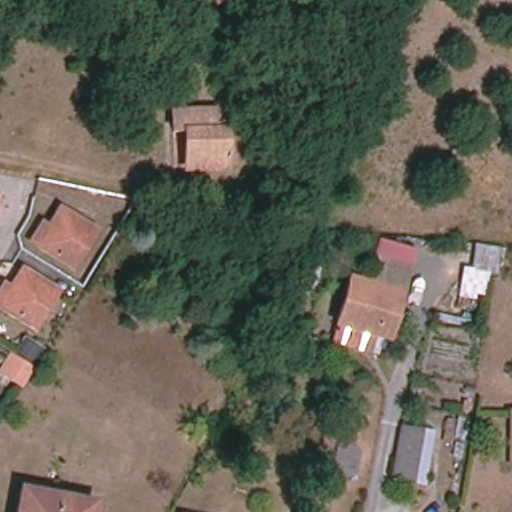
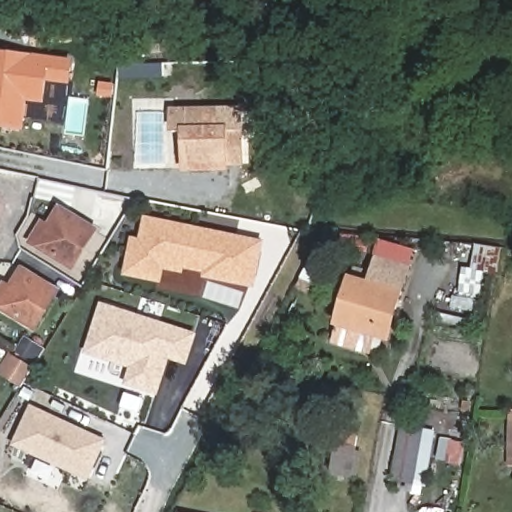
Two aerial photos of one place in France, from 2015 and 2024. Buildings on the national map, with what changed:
new [(73,59),(70,85),(47,82),(44,104),(27,102),(24,131),(0,128),(0,51),(73,59)]
unchanged [(186,131),(173,131),(173,112),(215,111),(216,130),(226,130),(226,169),(186,169),(186,131)]
unchanged [(246,124),(243,167),(227,169),(227,125),(246,124)]
unchanged [(95,230),(72,268),(37,246),(61,209),(95,230)]
new [(131,237),(140,239),(144,215),(265,240),(255,289),(202,278),(202,273),(185,269),(183,274),(164,270),(162,283),(123,276),(131,237)]
new [(465,271),(475,272),(477,246),(502,249),(497,274),(488,273),(483,295),(461,291),(465,271)]
unchanged [(339,322),(341,314),(355,269),(375,275),(383,249),(414,258),(402,300),(393,329),(382,326),(378,325),(376,333),(339,322)]
unchanged [(58,291),(34,329),(0,308),(0,307),(23,270),(58,291)]
new [(198,332),(187,365),(170,360),(159,395),(124,385),(129,368),(84,353),(100,302),(198,332)]
new [(27,339),(45,350),(35,365),(18,354),(27,339)]
new [(11,356),(12,356),(30,367),(20,384),(1,371),(11,356)]
new [(31,404),(108,441),(88,481),(12,446),(31,404)]
unchanged [(434,432),(425,486),(392,480),(400,435),(402,427),(434,432)]
unchanged [(512,439),(512,464),(511,464),(512,439)]
unchanged [(325,456),(327,445),(356,450),(354,461),(336,458),(325,456)]
demolished [(22,490),(93,503),(92,512),(18,512),(22,490)]

